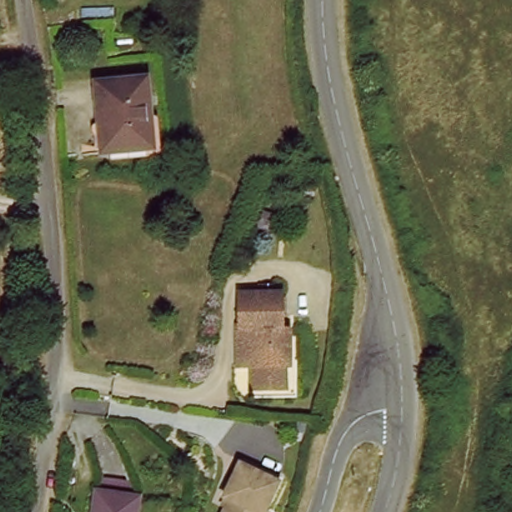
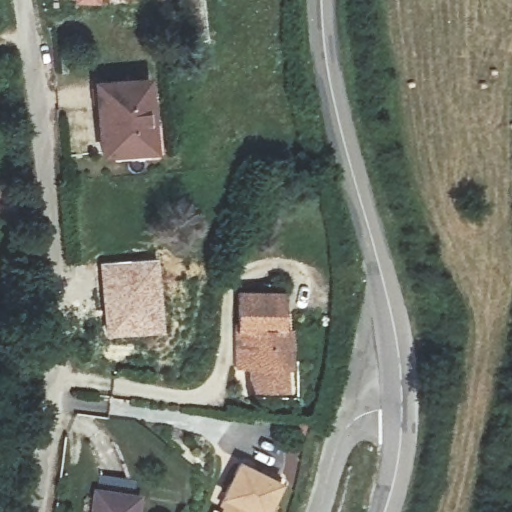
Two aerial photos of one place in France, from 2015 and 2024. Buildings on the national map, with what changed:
unchanged [(151,85),(151,156),(100,155),(100,84),(151,85)]
new [(158,256),(163,331),(103,336),(97,261),(158,256)]
unchanged [(278,290),(276,327),(286,328),(286,366),(242,366),(243,328),(234,328),(234,291),(278,290)]
unchanged [(262,512),(223,512),(229,498),(223,495),(238,463),(277,481),(262,512)]
unchanged [(136,512),(93,512),(95,491),(137,496),(136,512)]

